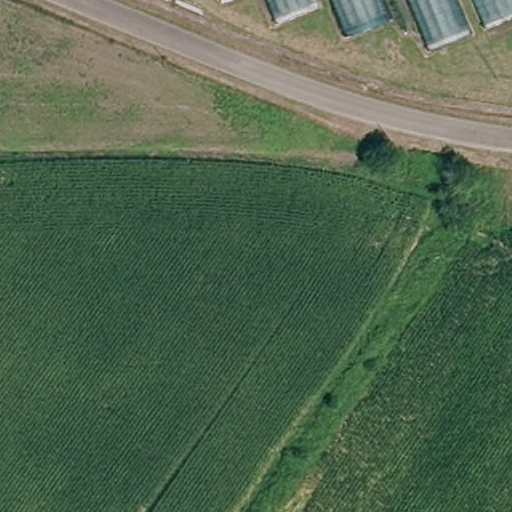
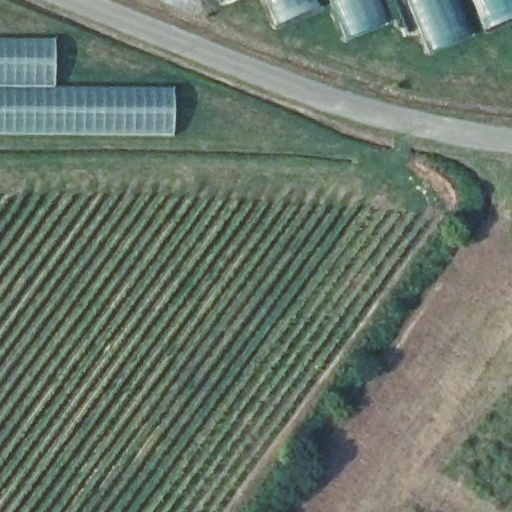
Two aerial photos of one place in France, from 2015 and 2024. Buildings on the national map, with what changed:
unchanged [(418,11),(348,40),(333,5),(284,27),(272,0),(512,0),(512,24),(435,56),(418,11)]
new [(55,40),(55,86),(175,88),(174,135),(0,133),(0,39),(55,40)]

